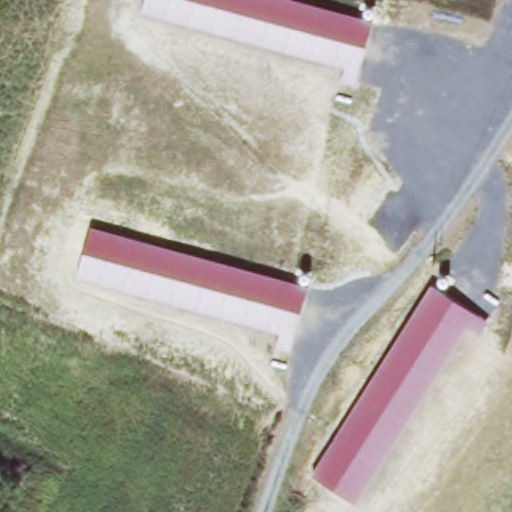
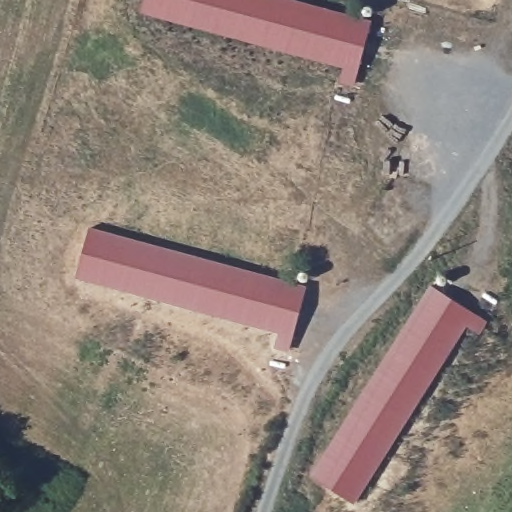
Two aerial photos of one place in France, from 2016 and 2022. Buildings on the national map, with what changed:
unchanged [(294,0),(371,21),(354,86),(340,82),(343,69),(140,12),(144,0),(294,0)]
unchanged [(306,286),(290,352),(275,348),(278,335),(76,280),(90,229),(306,286)]
unchanged [(486,322),(480,335),(465,326),(355,503),(310,477),(428,286),(486,322)]

